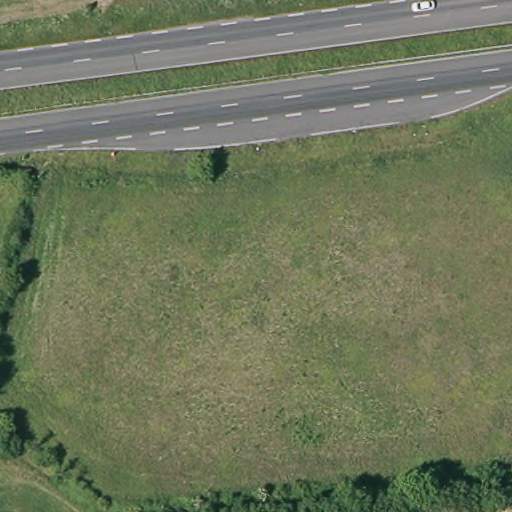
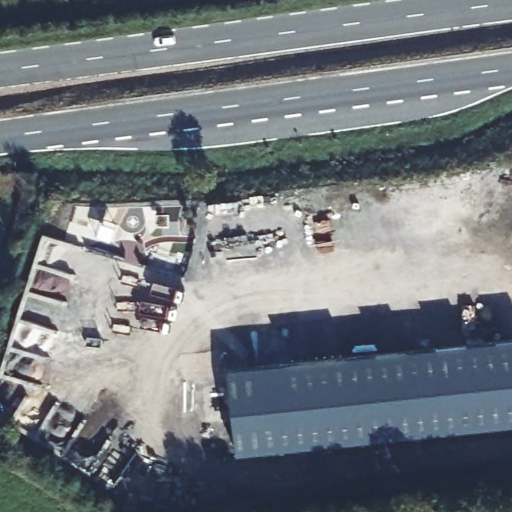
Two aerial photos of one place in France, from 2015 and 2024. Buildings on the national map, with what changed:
new [(512,415),(239,450),(228,366),(512,330),(512,415)]

